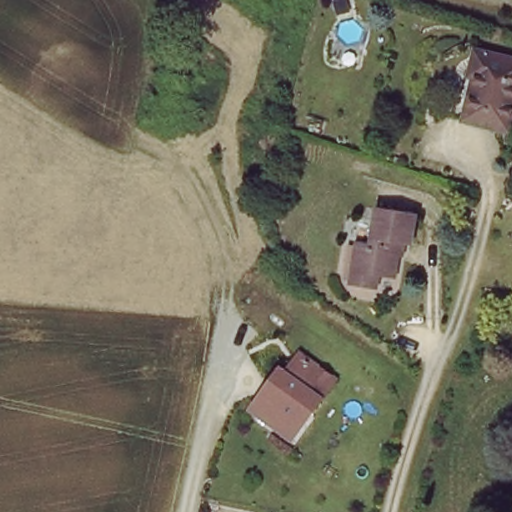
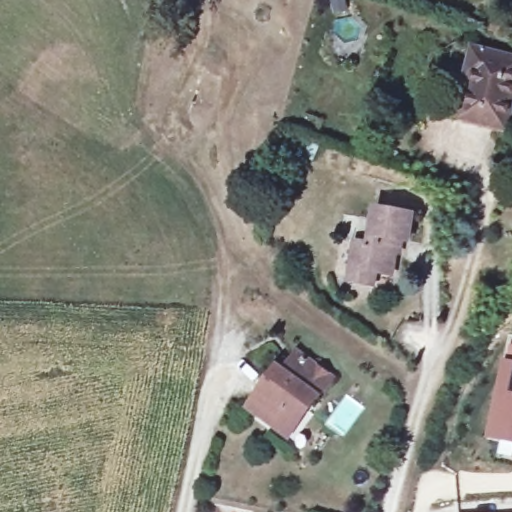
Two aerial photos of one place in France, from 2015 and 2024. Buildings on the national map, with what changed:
unchanged [(506,130),(466,119),(478,78),(470,76),(476,53),(512,63),(512,109),(506,130)]
unchanged [(364,245),(371,209),(418,216),(413,241),(403,241),(397,276),(379,273),(377,288),(347,284),(354,244),(364,245)]
new [(505,360),(512,361),(512,443),(488,438),(505,360)]
unchanged [(276,438),(248,417),(277,377),(282,381),(296,362),(302,367),(330,387),(306,419),(287,445),(276,438)]

